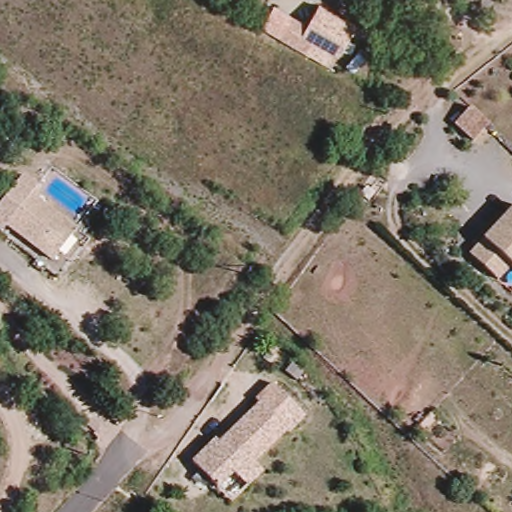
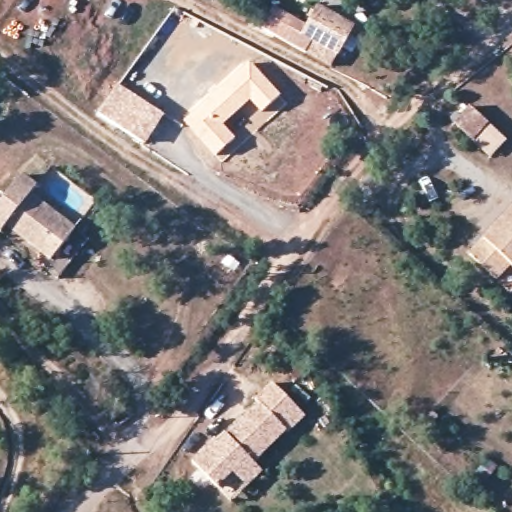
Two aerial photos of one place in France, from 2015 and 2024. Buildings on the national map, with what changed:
new [(261,27),(274,6),(306,25),(315,9),(320,12),(303,41),(336,58),(330,67),(261,27)]
unchanged [(357,31),(340,60),(303,41),(320,12),(357,31)]
new [(212,89),(248,59),(281,96),(261,114),(250,101),(224,125),(236,138),(216,156),(182,119),(212,89)]
new [(119,84),(165,115),(145,145),(97,113),(119,84)]
unchanged [(490,117),(474,133),(456,117),(472,101),(490,117)]
unchanged [(12,242),(0,232),(0,220),(32,182),(49,196),(45,201),(90,237),(62,268),(20,233),(12,242)]
unchanged [(511,281),(500,271),(488,284),(462,262),(509,212),(512,215),(512,280),(511,281)]
unchanged [(237,482),(230,473),(225,467),(207,480),(186,452),(212,433),(215,437),(261,402),(258,399),(277,384),(305,420),(286,434),(284,432),(247,459),(255,469),(237,482)]

